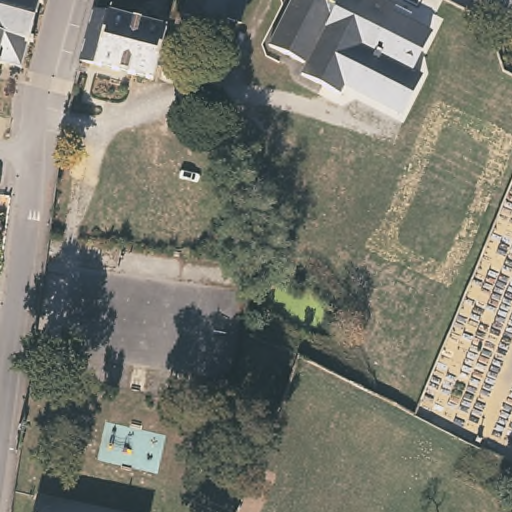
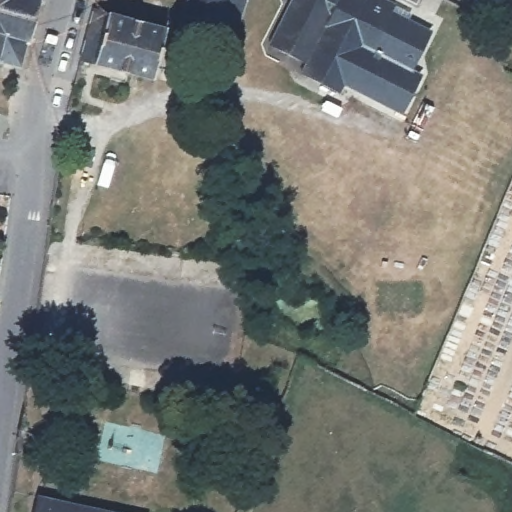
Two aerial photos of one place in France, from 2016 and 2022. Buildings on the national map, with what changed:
unchanged [(30,41),(27,40),(21,63),(0,58),(0,0),(41,0),(30,41)]
unchanged [(244,16),(231,12),(228,23),(221,22),(216,38),(185,28),(193,0),(248,0),(244,16)]
unchanged [(370,45),(361,40),(336,89),(300,70),(303,60),(268,43),(289,0),(393,0),(370,45)]
unchanged [(177,24),(163,76),(95,58),(110,6),(177,24)]
unchanged [(432,31),(411,70),(424,76),(403,115),(345,85),(342,92),(336,89),(361,40),(370,45),(387,10),(432,31)]
unchanged [(40,512),(44,494),(138,512),(40,512)]

